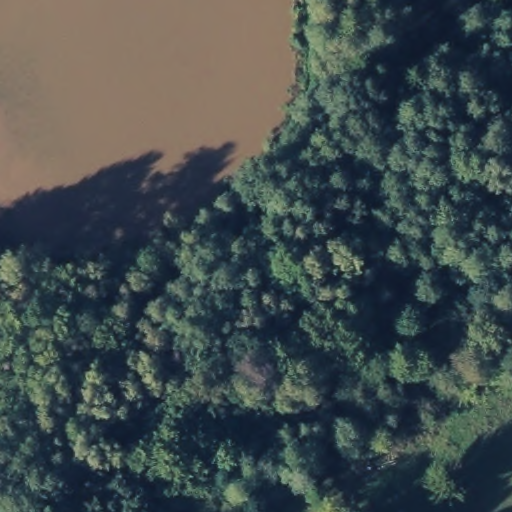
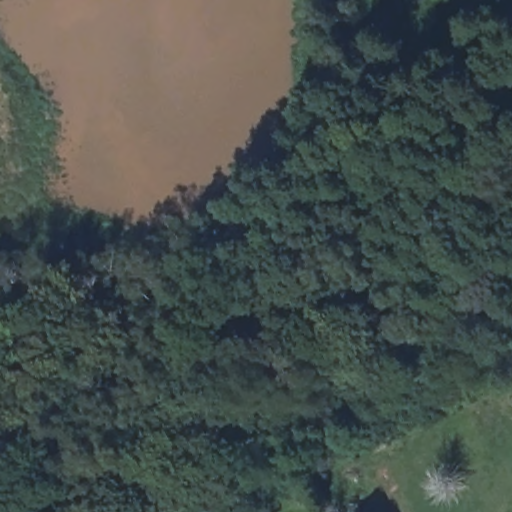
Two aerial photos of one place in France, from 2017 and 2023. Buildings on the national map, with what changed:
unchanged [(477,423),(487,438),(469,449),(460,434),(477,423)]

